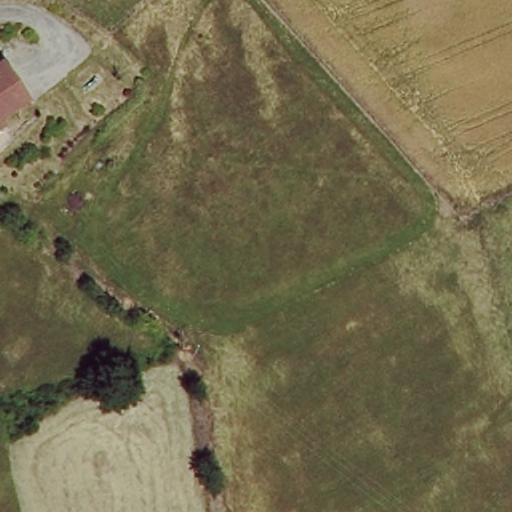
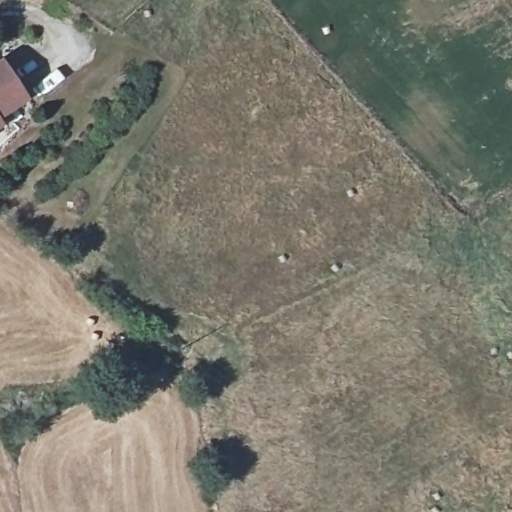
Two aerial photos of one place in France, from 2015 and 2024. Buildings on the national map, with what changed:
unchanged [(29,90),(0,108),(0,59),(6,55),(29,90)]
unchanged [(0,112),(2,115),(0,117),(0,112)]

